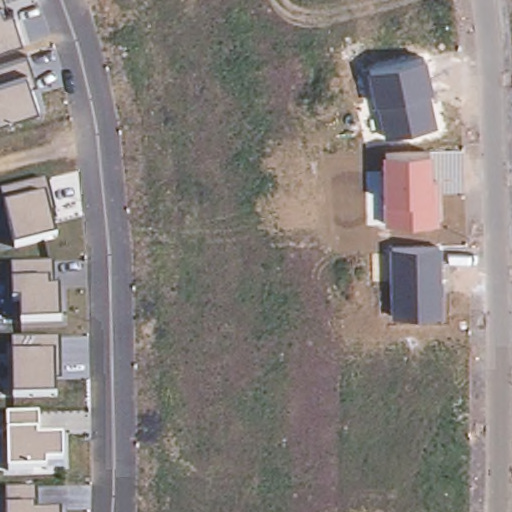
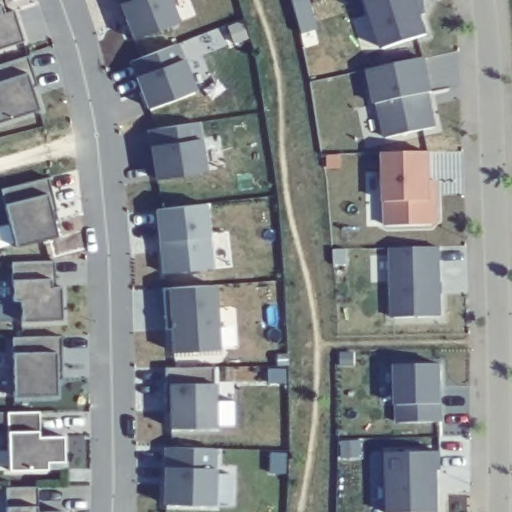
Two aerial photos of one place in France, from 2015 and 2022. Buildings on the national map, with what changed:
unchanged [(8,11),(14,9),(23,39),(0,47),(0,0),(5,0),(8,11)]
new [(116,0),(168,0),(177,25),(132,42),(124,23),(119,8),(116,0)]
unchanged [(419,20),(426,40),(382,53),(366,0),(420,0),(421,2),(426,18),(419,20)]
new [(129,64),(175,47),(193,94),(147,111),(141,94),(136,81),(129,64)]
unchanged [(378,103),(374,104),(368,70),(426,57),(434,92),(430,92),(437,126),(385,137),(378,103)]
unchanged [(24,60),(30,80),(39,113),(0,123),(0,66),(24,60)]
new [(148,133),(196,126),(203,175),(155,183),(152,165),(150,150),(148,133)]
unchanged [(384,201),(383,152),(431,150),(432,180),(438,180),(439,223),(384,225),(384,201)]
unchanged [(48,178),(58,219),(52,219),(57,238),(14,246),(7,206),(3,189),(48,178)]
new [(155,213),(203,208),(209,272),(162,276),(159,255),(158,245),(155,213)]
unchanged [(390,247),(391,247),(442,246),(444,316),(392,316),(390,247)]
unchanged [(50,260),(51,279),(51,287),(59,288),(59,322),(20,320),(20,300),(11,300),(11,281),(11,262),(50,260)]
new [(173,353),(171,327),(164,326),(162,289),(169,288),(218,286),(221,349),(173,353)]
unchanged [(60,336),(61,377),(55,376),(55,398),(13,395),(13,355),(13,337),(60,336)]
new [(398,408),(397,365),(443,364),(443,404),(444,423),(399,422),(398,408)]
new [(170,411),(166,411),(166,367),(215,367),(216,383),(217,428),(170,429),(170,411)]
unchanged [(38,412),(39,432),(39,437),(63,435),(64,463),(46,465),(46,471),(8,471),(7,434),(8,413),(38,412)]
new [(162,471),(163,451),(211,452),(209,509),(161,507),(161,487),(162,471)]
new [(443,451),(444,473),(439,473),(439,512),(389,512),(389,452),(443,451)]
unchanged [(35,507),(35,512),(7,512),(7,509),(6,488),(36,486),(35,507)]

